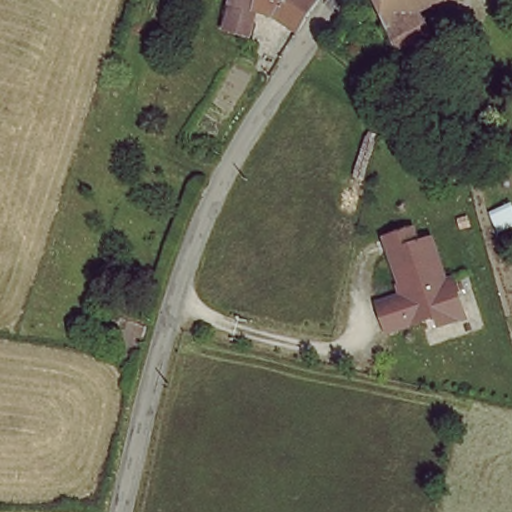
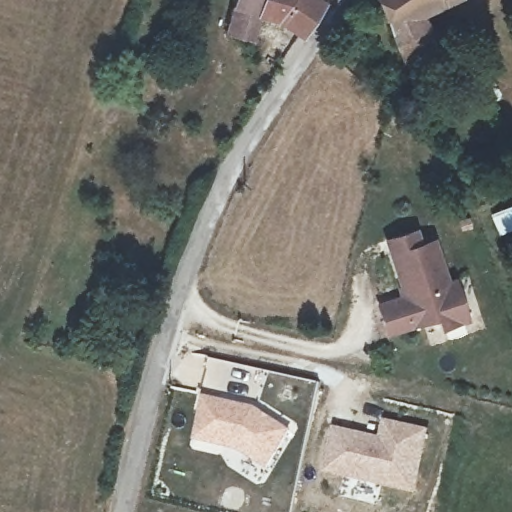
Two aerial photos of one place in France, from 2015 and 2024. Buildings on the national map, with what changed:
unchanged [(298,34),(271,20),(255,16),(248,41),(226,33),(235,0),(312,0),(316,3),(298,34)]
unchanged [(418,10),(441,62),(415,73),(403,62),(376,0),(436,0),(418,10)]
unchanged [(441,283),(450,281),(463,320),(433,330),(430,319),(381,335),(372,306),(400,297),(387,254),(383,240),(408,232),(413,246),(427,242),(441,283)]
new [(265,468),(237,449),(193,438),(203,395),(255,407),(292,430),(265,468)]
new [(430,430),(417,494),(324,471),(335,427),(381,437),(386,421),(430,430)]

